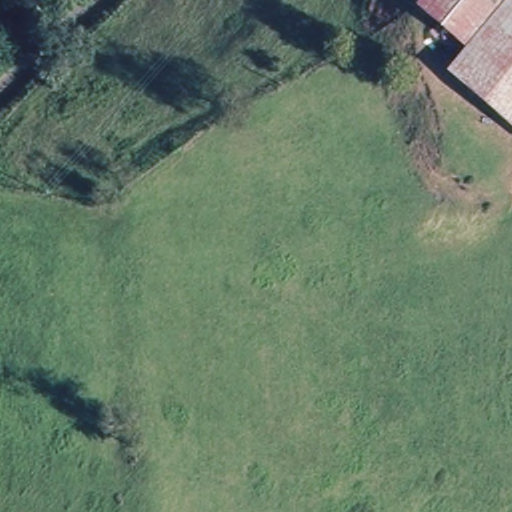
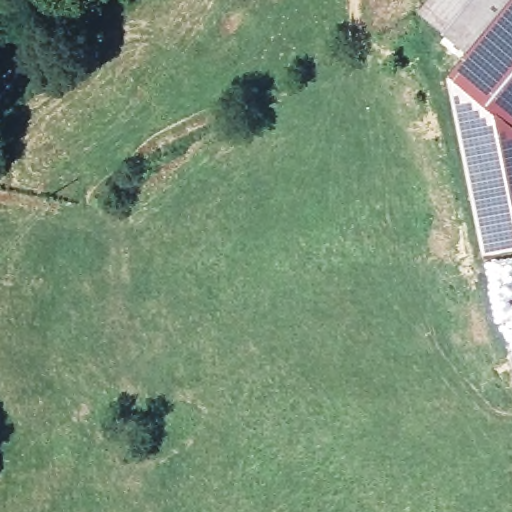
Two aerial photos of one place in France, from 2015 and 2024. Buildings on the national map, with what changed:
unchanged [(512,14),(475,60),(424,21),(439,0),(512,0),(512,14)]
unchanged [(512,125),(458,85),(475,60),(512,14),(512,125)]
new [(458,85),(512,125),(512,247),(481,253),(446,75),(466,53),(475,60),(458,85)]

